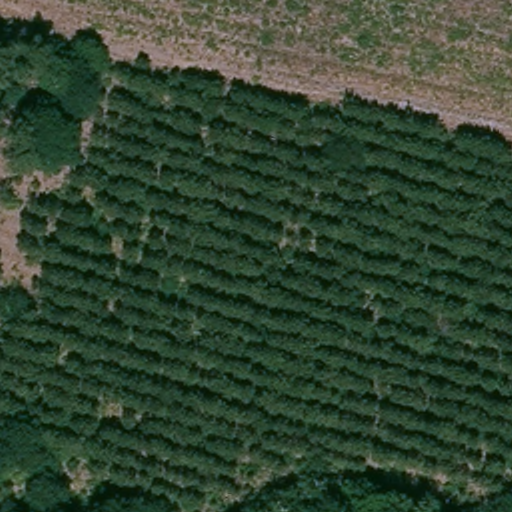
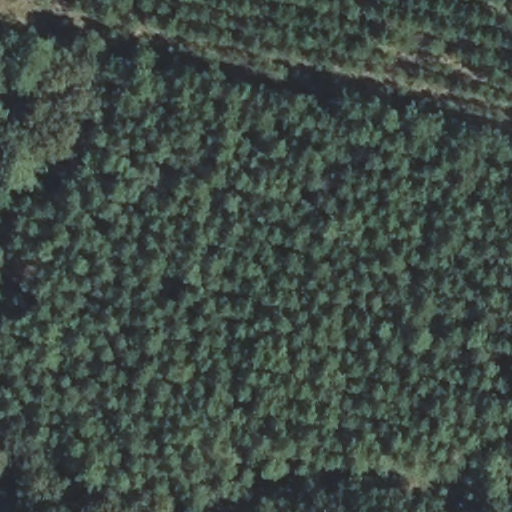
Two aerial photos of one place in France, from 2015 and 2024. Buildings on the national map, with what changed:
unchanged [(0,471),(47,485),(47,491),(63,495),(80,501),(76,512),(0,512),(0,471)]

